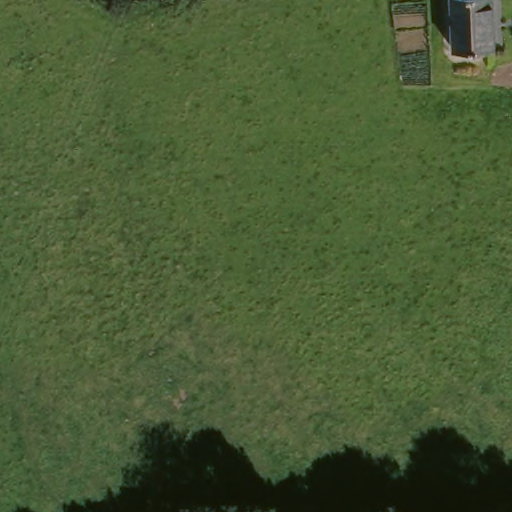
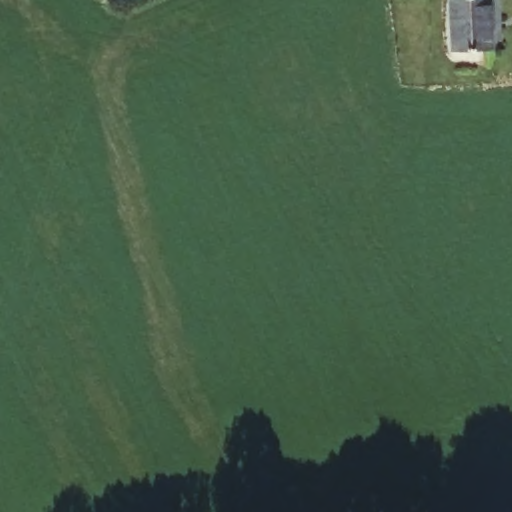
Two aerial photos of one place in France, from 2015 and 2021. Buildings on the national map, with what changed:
unchanged [(492,50),(452,50),(452,0),(492,0),(492,50)]

